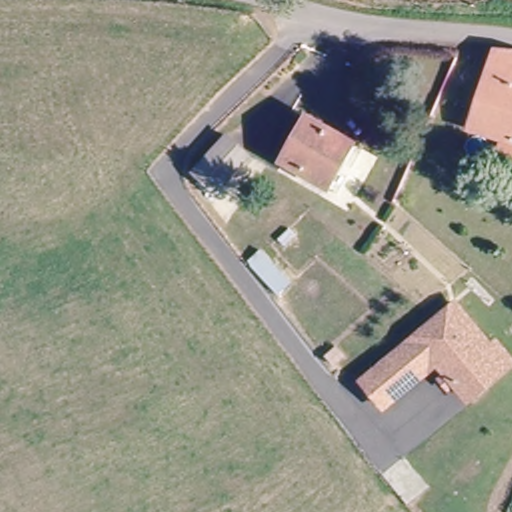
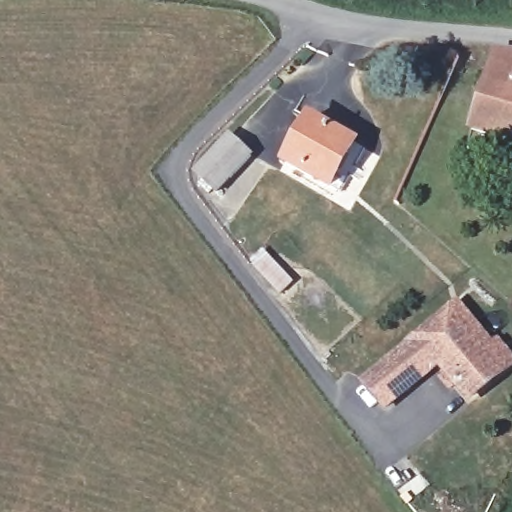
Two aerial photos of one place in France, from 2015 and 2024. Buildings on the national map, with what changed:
unchanged [(508,129),(472,116),(496,46),(512,52),(512,146),(504,144),(508,129)]
unchanged [(306,109),(358,138),(330,185),(279,160),(306,109)]
unchanged [(188,165),(227,130),(254,156),(213,194),(188,165)]
unchanged [(264,246),(300,282),(278,298),(248,262),(264,246)]
unchanged [(446,372),(452,367),(443,357),(388,401),(366,372),(456,303),(492,348),(500,342),(512,358),(512,363),(507,366),(473,394),(461,378),(455,384),(446,372)]

